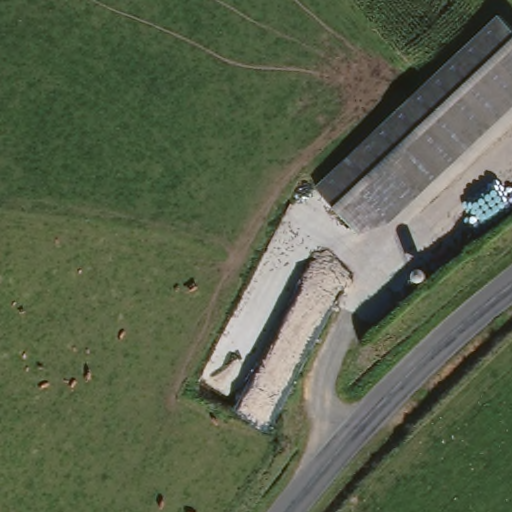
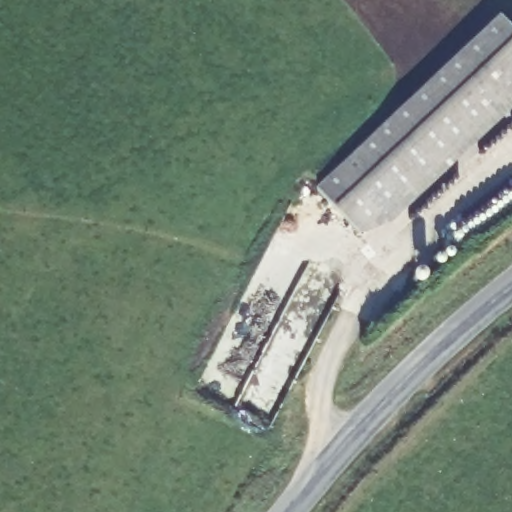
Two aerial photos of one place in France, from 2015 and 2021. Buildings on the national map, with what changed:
unchanged [(512,28),(512,107),(372,233),(325,187),(499,15),(512,28)]

